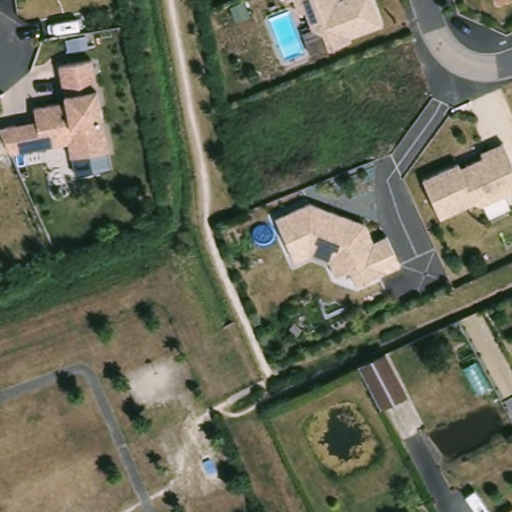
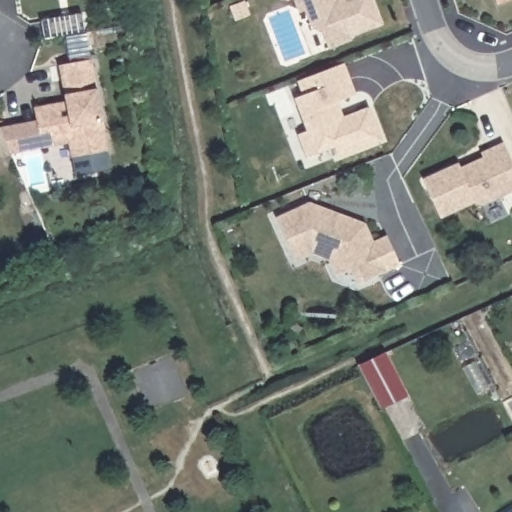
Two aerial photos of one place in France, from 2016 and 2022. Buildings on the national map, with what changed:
unchanged [(382,24),(350,37),(351,40),(328,48),(322,32),(312,27),(305,10),(298,12),(294,0),(373,0),(382,24)]
unchanged [(498,4),(496,0),(509,0),(498,4)]
new [(82,13),(85,32),(45,39),(41,20),(82,13)]
unchanged [(34,107),(60,102),(66,101),(59,65),(92,59),(108,150),(71,156),(69,142),(42,147),(11,153),(0,130),(0,127),(37,120),(34,107)]
new [(297,81),(344,63),(356,94),(337,101),(343,116),(369,107),(382,139),(338,156),(334,146),(306,157),(297,134),(307,130),(294,98),(302,95),(297,81)]
unchanged [(461,167),(483,157),(481,153),(503,142),(512,161),(512,192),(482,205),(475,202),(441,218),(422,179),(458,163),(461,167)]
unchanged [(295,261),(292,254),(276,218),(310,202),(322,207),(331,210),(365,223),(373,242),(387,235),(400,265),(357,284),(351,270),(337,276),(330,261),(311,254),(295,261)]
unchanged [(386,352),(386,353),(407,398),(380,410),(358,365),(386,352)]

